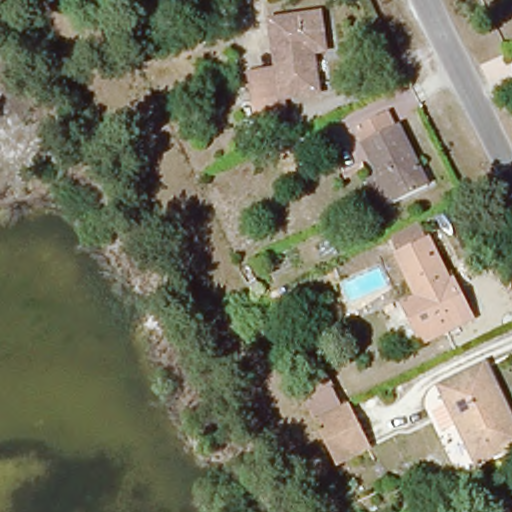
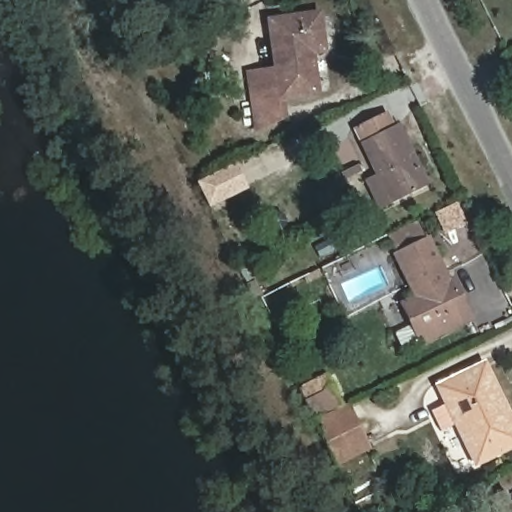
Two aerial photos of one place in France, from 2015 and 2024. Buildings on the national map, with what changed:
unchanged [(316,44),(321,85),(284,90),(286,107),(259,120),(254,65),(278,62),(273,11),(324,5),(329,42),(316,44)]
unchanged [(391,121),(396,118),(427,183),(391,201),(354,122),(384,107),(391,121)]
new [(249,188),(209,208),(197,182),(237,162),(249,188)]
unchanged [(450,277),(459,273),(476,308),(418,336),(399,297),(413,290),(392,247),(428,229),(450,277)]
unchanged [(271,338),(267,336),(267,340),(266,338),(259,324),(259,320),(263,322),(288,309),(295,325),(271,338)]
unchanged [(512,411),(512,442),(477,459),(441,380),(487,358),(512,411)]
unchanged [(335,462),(309,412),(299,380),(329,365),(339,402),(351,397),(373,446),(335,462)]
unchanged [(512,495),(512,512),(505,512),(499,501),(512,495)]

